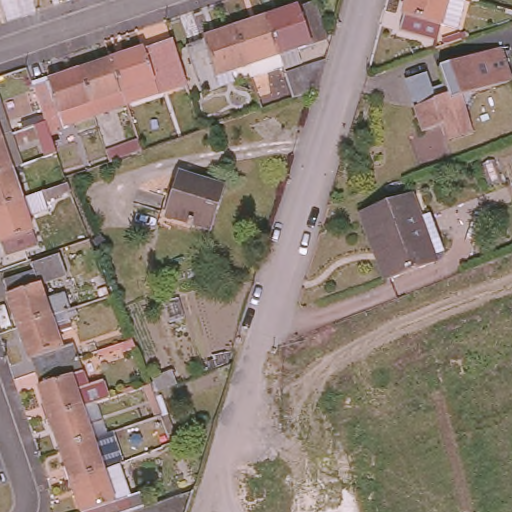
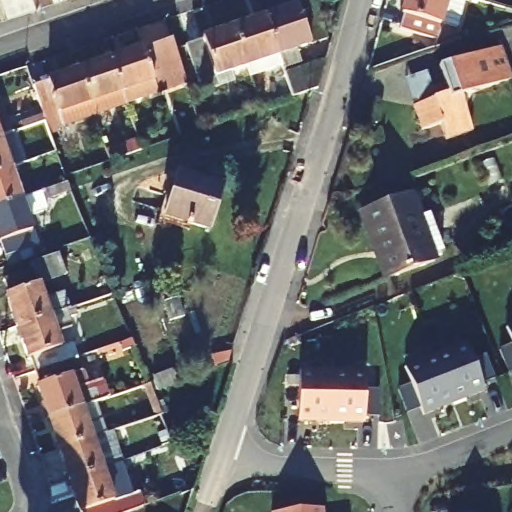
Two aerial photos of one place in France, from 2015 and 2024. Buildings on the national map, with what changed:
unchanged [(307,40),(307,41),(272,53),(260,15),(295,3),(296,6),(312,0),(324,35),(307,40)]
unchanged [(401,27),(409,0),(449,0),(439,38),(401,27)]
unchanged [(242,63),(230,25),(260,15),(272,53),(276,64),(247,75),(242,63)]
unchanged [(242,63),(197,78),(185,42),(200,38),(199,36),(230,25),(242,63)]
unchanged [(121,89),(111,56),(145,44),(146,46),(172,37),(185,80),(125,102),(121,89)]
unchanged [(452,90),(443,68),(505,43),(512,62),(512,81),(470,99),(479,125),(452,137),(445,123),(428,131),(419,105),(452,90)]
unchanged [(111,56),(121,89),(91,100),(80,66),(111,56)]
unchanged [(317,60),(310,88),(287,96),(279,73),(317,60)]
unchanged [(91,100),(45,115),(34,84),(50,79),(49,77),(80,66),(91,100)]
unchanged [(0,97),(12,130),(0,135),(0,97)]
unchanged [(46,119),(57,148),(42,153),(33,123),(46,119)]
unchanged [(22,161),(10,165),(0,169),(0,135),(12,130),(22,161)]
unchanged [(0,203),(0,169),(10,165),(21,196),(0,203)]
unchanged [(218,187),(212,207),(217,209),(211,230),(166,215),(177,175),(218,187)]
unchanged [(36,243),(5,254),(0,241),(0,203),(21,196),(36,243)]
unchanged [(432,259),(433,263),(390,282),(377,255),(374,256),(360,221),(410,199),(417,220),(428,216),(444,254),(432,259)]
unchanged [(18,325),(2,279),(34,268),(32,263),(57,254),(64,272),(39,281),(51,314),(18,325)]
unchanged [(18,325),(51,314),(72,306),(75,314),(67,317),(71,326),(56,331),(62,345),(72,342),(77,357),(34,372),(18,325)]
new [(508,327),(512,325),(512,337),(508,327)]
new [(437,354),(469,343),(487,390),(456,402),(437,354)]
new [(502,349),(512,345),(512,372),(511,372),(502,349)]
new [(407,366),(437,354),(456,402),(425,414),(407,366)]
new [(475,359),(488,354),(497,378),(484,383),(475,359)]
unchanged [(77,357),(87,384),(102,379),(107,397),(95,401),(49,417),(34,372),(77,357)]
new [(334,422),(301,421),(302,375),(335,376),(334,422)]
new [(367,423),(334,422),(335,376),(368,377),(367,423)]
new [(401,388),(413,383),(422,407),(410,412),(401,388)]
unchanged [(102,420),(89,425),(93,436),(60,448),(49,417),(95,401),(102,420)]
unchanged [(93,436),(109,431),(120,462),(117,462),(85,473),(70,479),(60,448),(93,436)]
unchanged [(82,509),(80,509),(70,479),(85,473),(117,462),(129,495),(139,492),(142,504),(122,512),(83,512),(82,509)]
new [(322,508),(323,512),(287,512),(322,508)]

